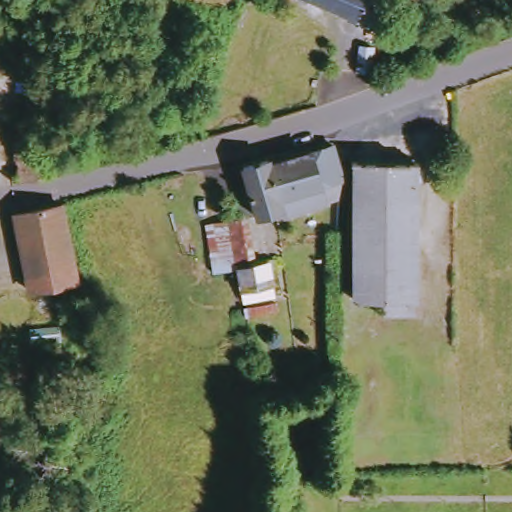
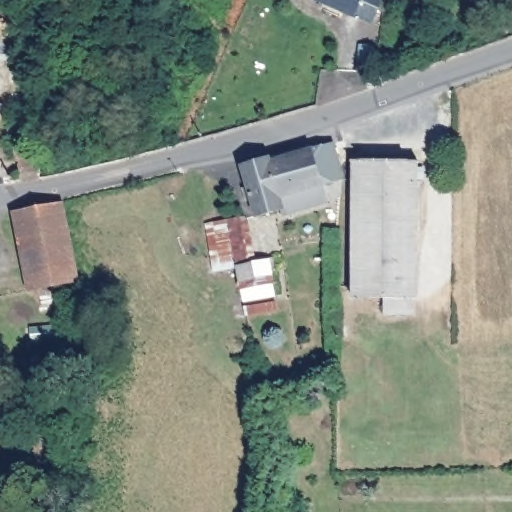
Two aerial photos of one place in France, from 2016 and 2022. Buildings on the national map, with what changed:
unchanged [(370,20),(355,15),(354,16),(314,0),(378,0),(370,20)]
unchanged [(408,0),(419,0),(417,5),(408,0)]
unchanged [(362,77),(352,76),(357,53),(366,54),(362,77)]
unchanged [(17,154),(21,154),(21,119),(33,119),(47,119),(47,178),(15,177),(17,154)]
unchanged [(347,199),(292,216),(288,210),(264,216),(249,167),(271,159),(277,163),(336,144),(347,175),(347,199)]
unchanged [(422,303),(417,303),(417,317),(389,317),(389,300),(355,298),(359,162),(424,164),(422,303)]
unchanged [(32,252),(29,233),(26,216),(73,204),(77,224),(80,244),(85,264),(88,283),(40,291),(37,274),(32,252)]
unchanged [(249,216),(259,256),(272,255),(280,292),(250,298),(242,263),(232,221),(249,216)]
unchanged [(242,263),(192,275),(183,234),(232,221),(242,263)]

